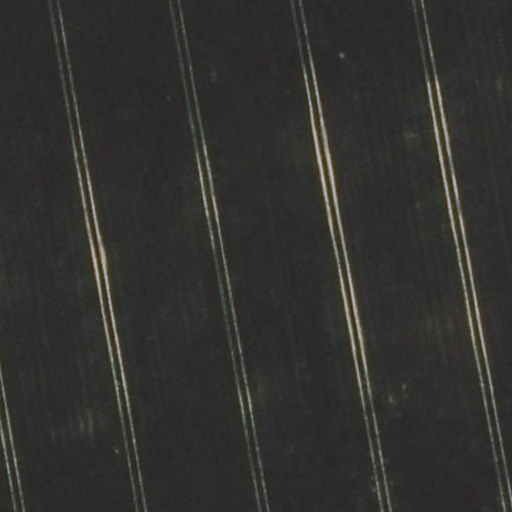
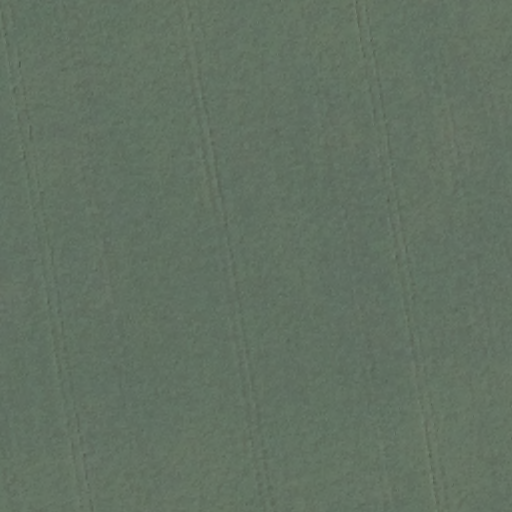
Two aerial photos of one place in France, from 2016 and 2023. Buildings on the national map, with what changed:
[]

